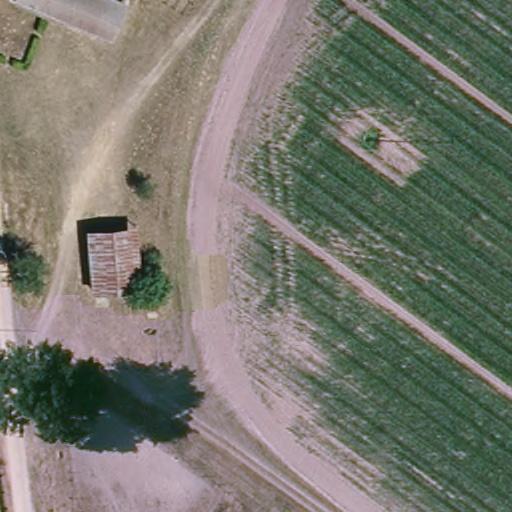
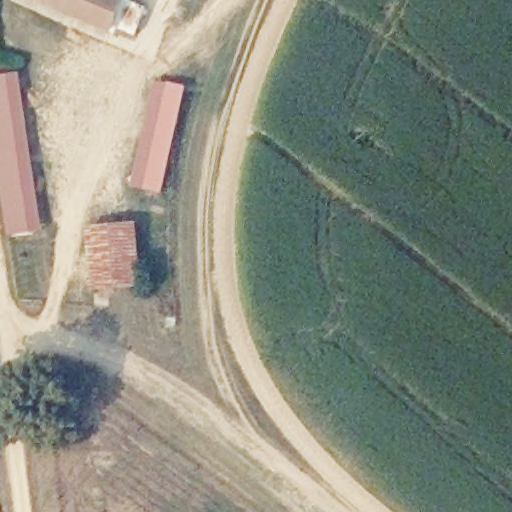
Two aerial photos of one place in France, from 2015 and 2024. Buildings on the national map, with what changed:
unchanged [(110,28),(94,22),(42,0),(122,0),(110,28)]
new [(0,78),(18,75),(41,231),(7,237),(0,186),(0,78)]
new [(131,187),(155,82),(185,86),(162,193),(131,187)]
unchanged [(138,282),(92,285),(89,227),(135,224),(138,282)]

